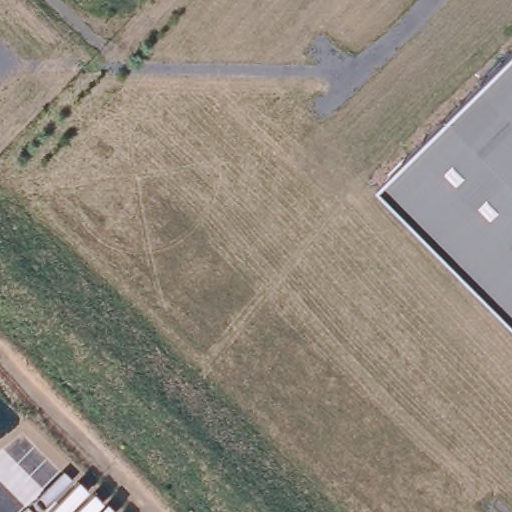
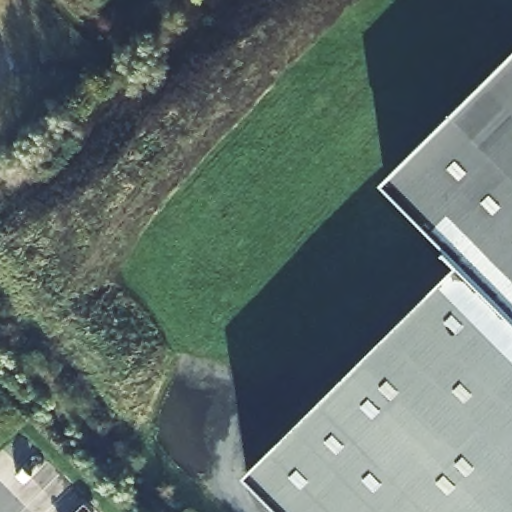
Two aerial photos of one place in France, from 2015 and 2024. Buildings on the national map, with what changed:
unchanged [(380,178),(512,47),(512,310),(380,178)]
new [(460,258),(512,310),(512,512),(286,512),(245,471),(460,258)]

